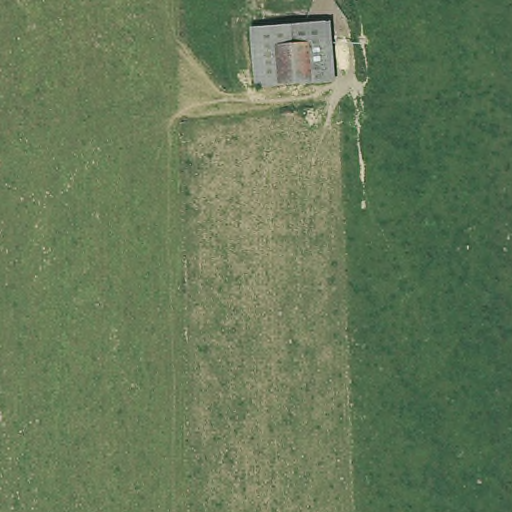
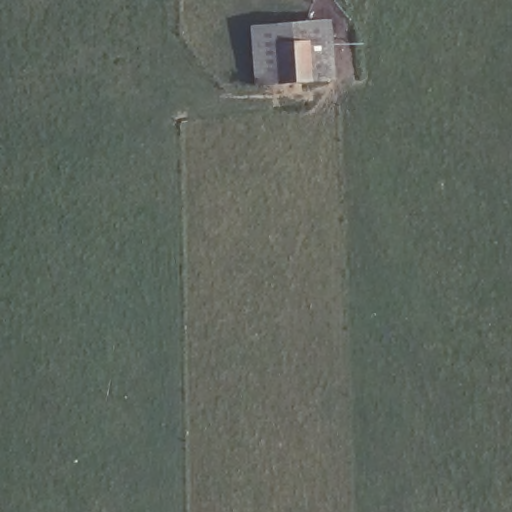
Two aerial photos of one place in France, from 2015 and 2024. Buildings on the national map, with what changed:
unchanged [(253,82),(248,21),(331,15),(335,75),(253,82)]

